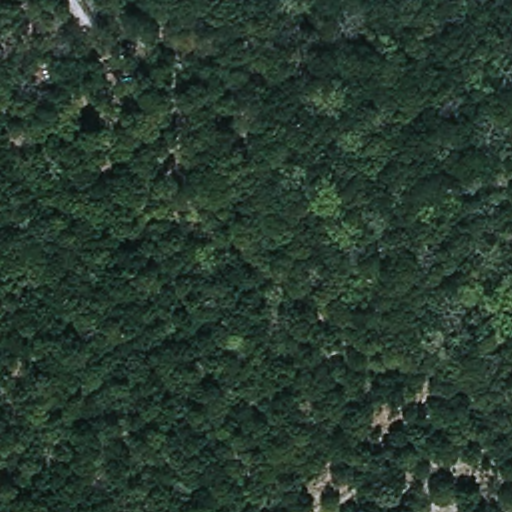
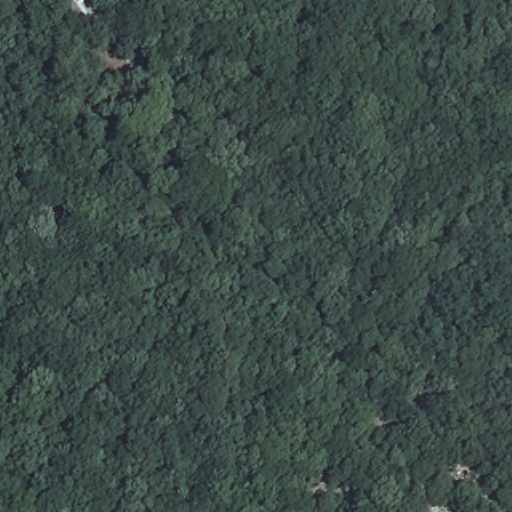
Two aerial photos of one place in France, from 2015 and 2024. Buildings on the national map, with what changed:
unchanged [(54,0),(94,0),(106,17),(79,37),(54,0)]

